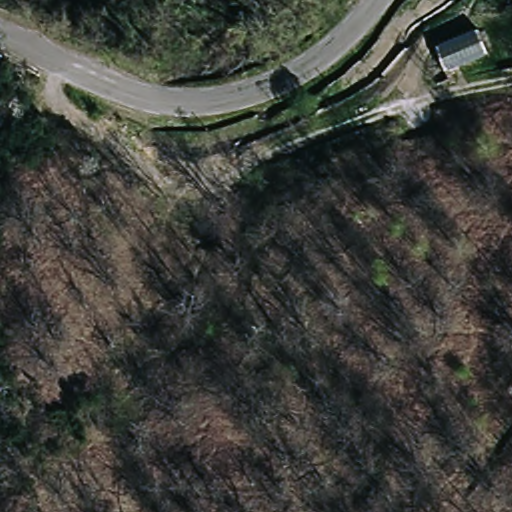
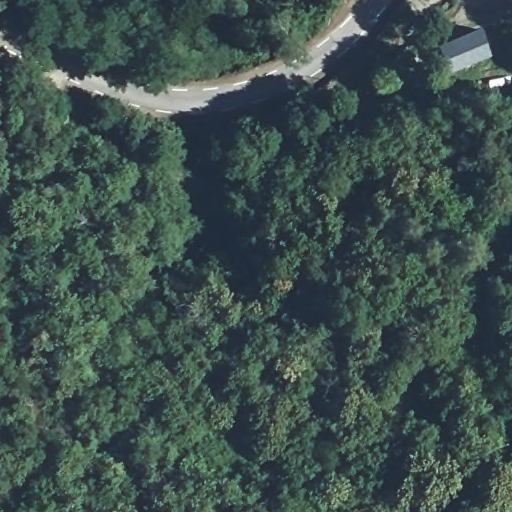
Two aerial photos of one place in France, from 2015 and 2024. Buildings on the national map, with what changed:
unchanged [(476,31),(487,57),(447,74),(436,49),(476,31)]

